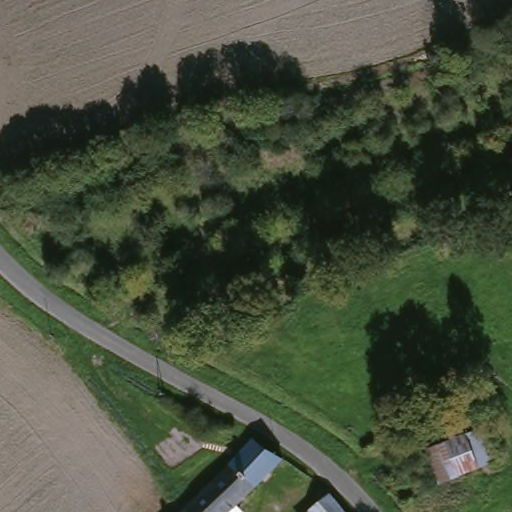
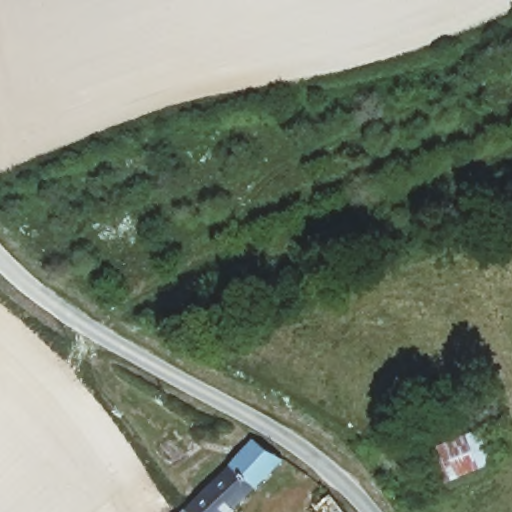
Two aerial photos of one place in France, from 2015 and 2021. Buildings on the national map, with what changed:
unchanged [(498,458),(442,480),(431,448),(486,426),(498,458)]
unchanged [(207,491),(277,435),(302,464),(242,512),(213,512),(201,497),(207,491)]
unchanged [(335,490),(350,512),(321,512),(318,509),(315,505),(335,490)]
unchanged [(201,497),(213,512),(183,512),(201,497)]
unchanged [(321,512),(314,512),(318,509),(321,512)]

